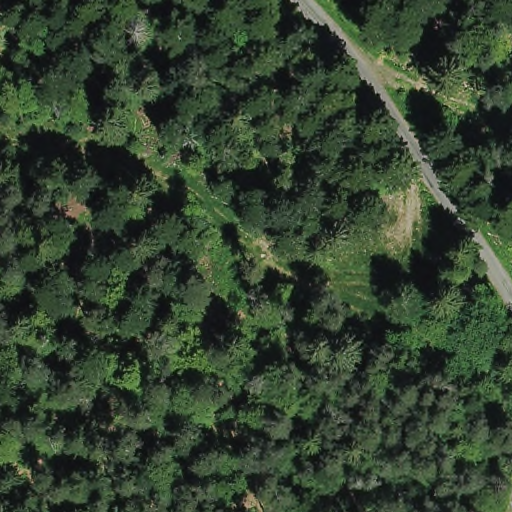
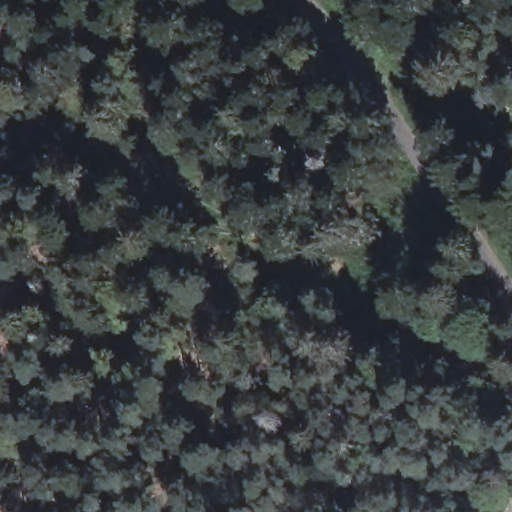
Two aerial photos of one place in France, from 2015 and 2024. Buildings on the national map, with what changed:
unchanged [(481,276),(508,306),(512,321),(512,326),(495,341),(456,295),(481,276)]

